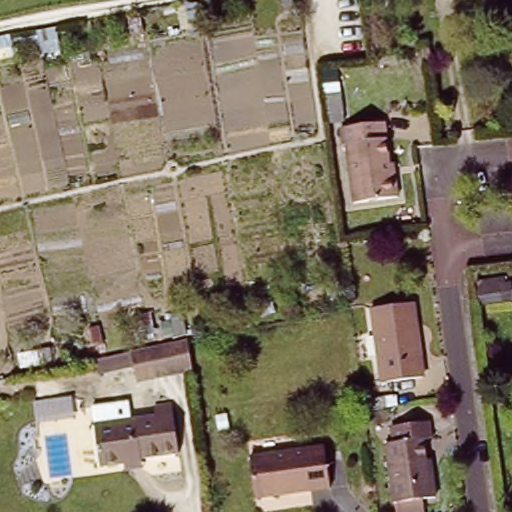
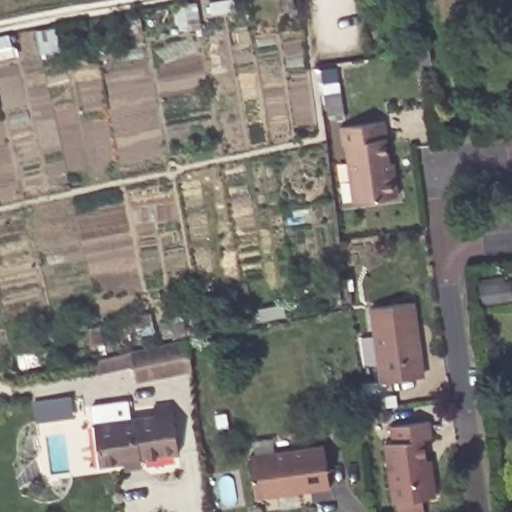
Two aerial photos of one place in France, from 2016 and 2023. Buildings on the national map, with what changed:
unchanged [(363,219),(360,202),(356,203),(348,146),(345,146),(343,129),(388,122),(391,139),(388,140),(391,165),(395,165),(396,175),(400,197),(383,199),(386,216),(363,219)]
unchanged [(372,310),(413,305),(423,378),(382,383),(372,310)]
unchanged [(178,337),(188,335),(189,338),(193,369),(139,378),(134,347),(178,337)]
unchanged [(144,469),(142,460),(118,463),(98,466),(93,428),(113,425),(112,421),(155,415),(154,406),(172,403),(175,412),(180,455),(161,458),(162,466),(144,469)]
unchanged [(437,468),(440,494),(398,500),(390,441),(399,439),(396,423),(434,418),(436,435),(429,435),(431,457),(435,456),(437,468)]
unchanged [(320,448),(325,490),(250,500),(245,458),(320,448)]

